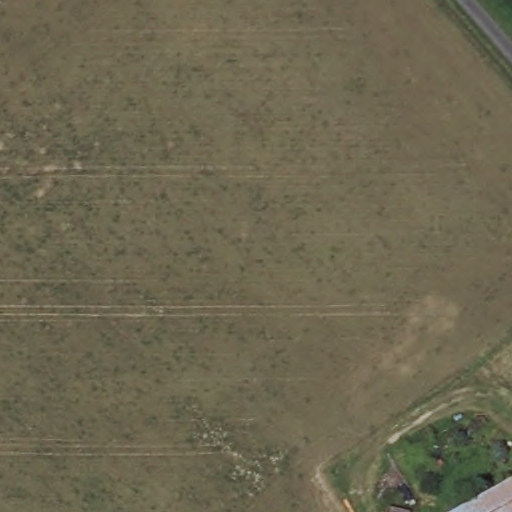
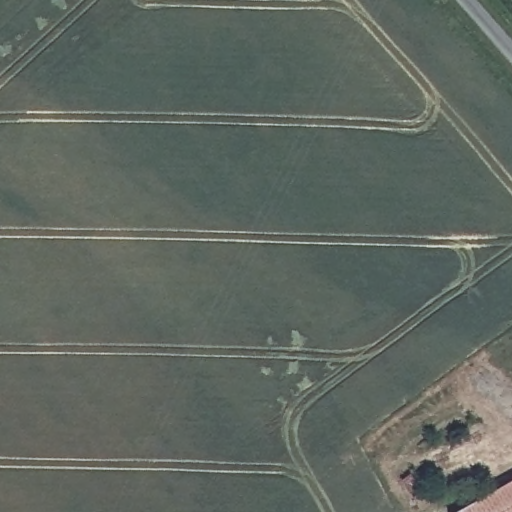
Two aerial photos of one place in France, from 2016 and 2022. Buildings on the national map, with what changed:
unchanged [(512,478),(512,512),(457,512),(491,490),(512,478)]

